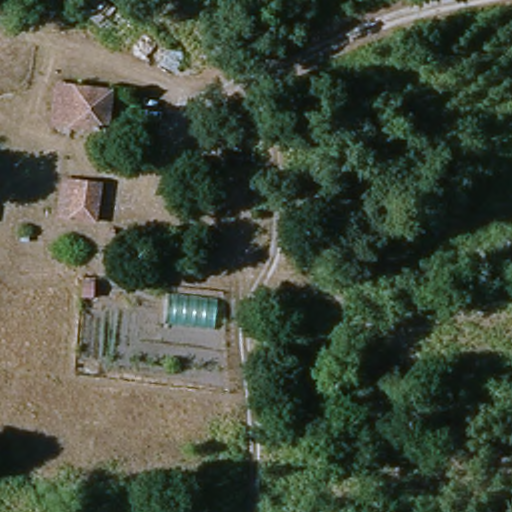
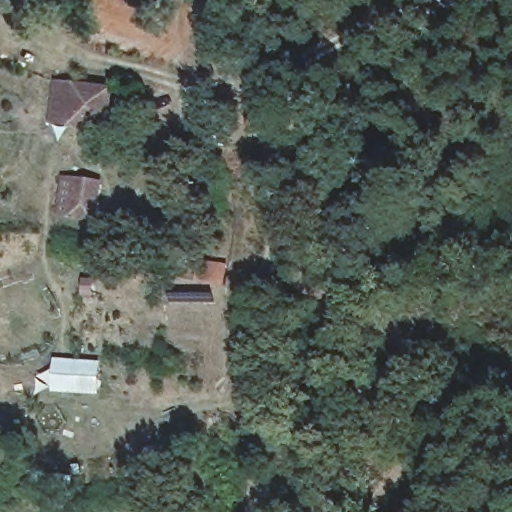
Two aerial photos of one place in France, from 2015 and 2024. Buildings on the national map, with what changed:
unchanged [(61,135),(66,84),(118,90),(114,137),(61,135)]
unchanged [(58,180),(101,184),(95,221),(54,217),(55,206),(58,180)]
new [(101,362),(98,395),(54,392),(57,358),(101,362)]

